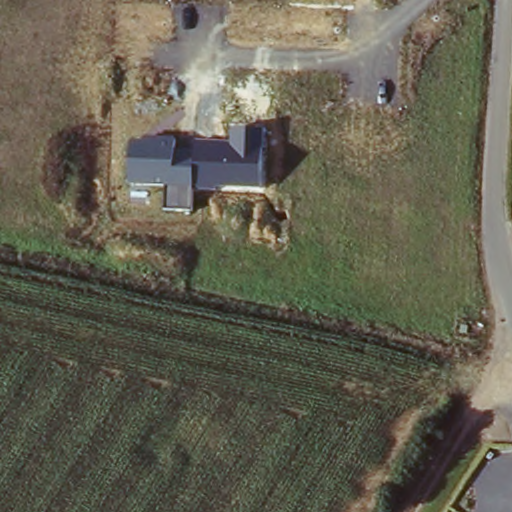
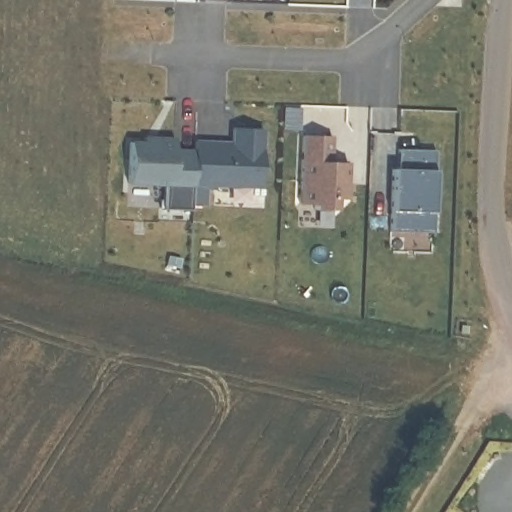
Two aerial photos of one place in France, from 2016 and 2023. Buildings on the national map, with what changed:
unchanged [(176,138),(175,150),(195,150),(196,141),(231,143),(232,130),(264,130),(261,191),(194,189),(193,211),(164,210),(165,189),(126,186),(129,141),(142,142),(142,138),(176,138)]
new [(327,138),(327,159),(322,159),(321,164),(342,165),(341,199),(331,199),(331,211),(311,210),(311,205),(297,204),(299,137),(327,138)]
new [(428,232),(387,232),(389,170),(394,169),(394,152),(431,154),(428,232)]

